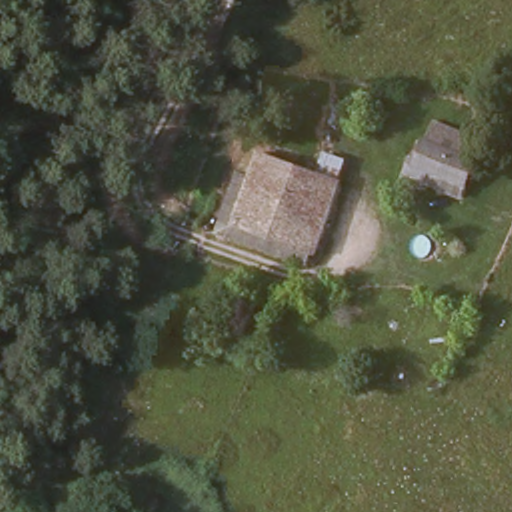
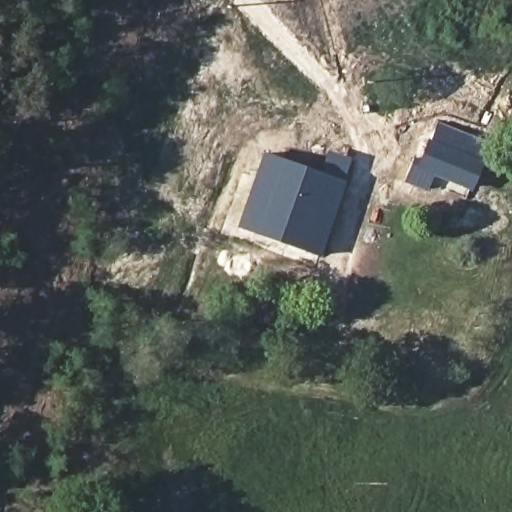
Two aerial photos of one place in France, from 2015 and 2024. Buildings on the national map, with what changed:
unchanged [(426,138),(483,160),(462,201),(433,188),(431,197),(407,183),(426,138)]
unchanged [(255,180),(264,156),(342,186),(335,207),(255,180)]
unchanged [(315,257),(236,228),(255,180),(335,207),(315,257)]

